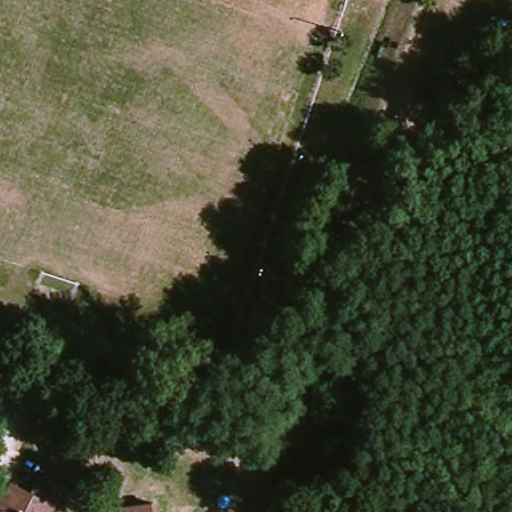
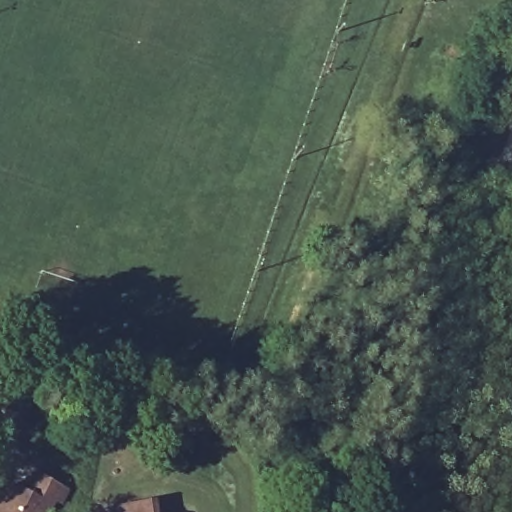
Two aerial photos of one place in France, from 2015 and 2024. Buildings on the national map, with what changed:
unchanged [(45,477),(75,492),(66,507),(61,504),(57,512),(0,512),(2,509),(0,503),(0,494),(11,491),(16,482),(37,493),(45,477)]
unchanged [(157,499),(159,512),(122,512),(121,505),(157,499)]

